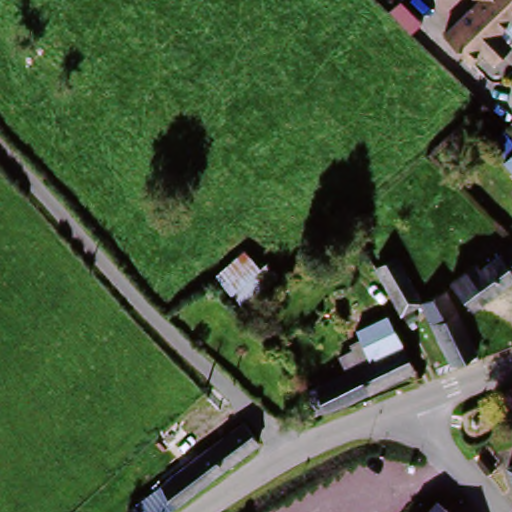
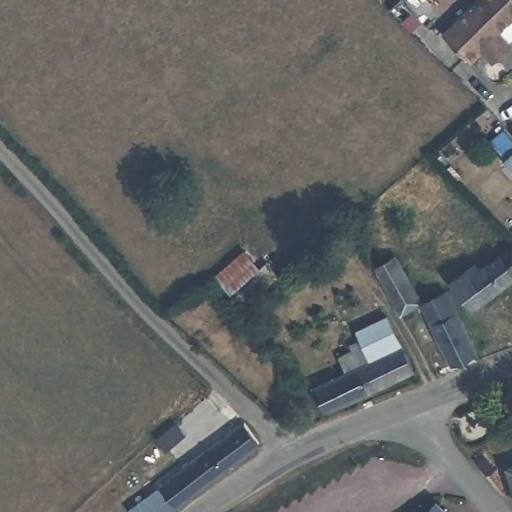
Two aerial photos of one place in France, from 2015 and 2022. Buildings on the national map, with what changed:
unchanged [(467,0),(512,0),(512,23),(499,36),(510,47),(487,65),(475,59),(463,69),(434,34),(471,4),(467,0)]
unchanged [(512,158),(512,178),(502,167),(512,158)]
unchanged [(512,273),(467,303),(452,280),(477,263),(480,268),(512,247),(512,273)]
unchanged [(260,270),(267,264),(281,279),(245,310),(214,276),(244,251),(260,270)]
unchanged [(419,304),(403,313),(372,269),(388,257),(419,304)]
unchanged [(439,292),(472,360),(451,368),(419,304),(439,292)]
unchanged [(295,393),(307,387),(301,371),(324,361),(331,379),(385,357),(379,340),(360,348),(353,330),(385,315),(412,376),(307,420),(295,393)]
unchanged [(244,456),(176,512),(162,512),(150,497),(222,432),(244,456)]
unchanged [(512,472),(512,491),(505,474),(512,472)]
unchanged [(432,512),(423,512),(427,508),(432,512)]

